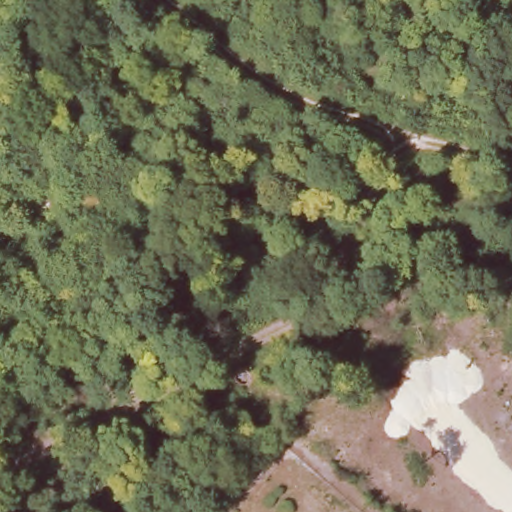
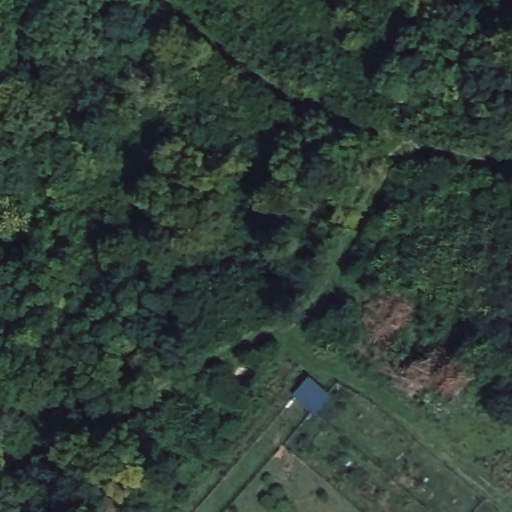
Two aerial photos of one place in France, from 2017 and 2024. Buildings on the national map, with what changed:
[]

